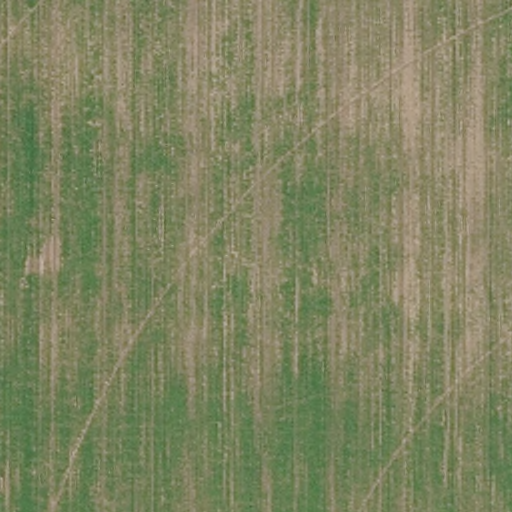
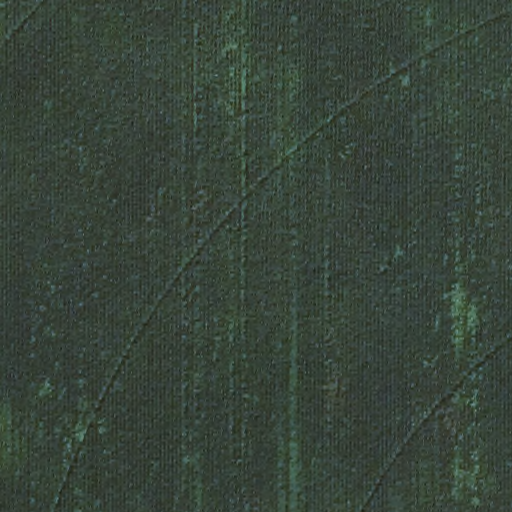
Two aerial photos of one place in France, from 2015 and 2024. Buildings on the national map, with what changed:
[]

